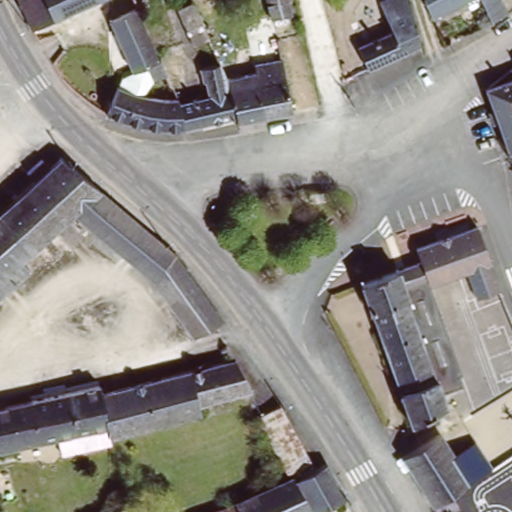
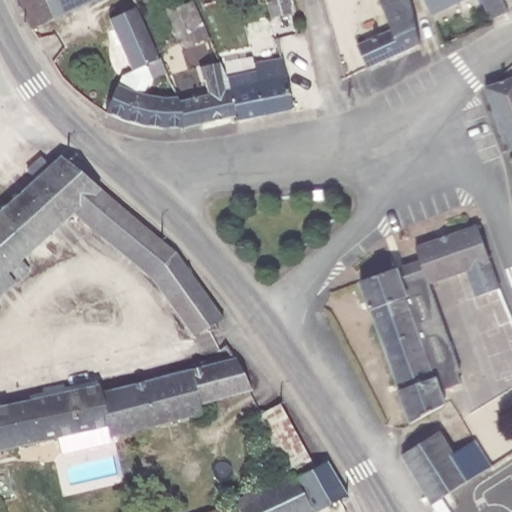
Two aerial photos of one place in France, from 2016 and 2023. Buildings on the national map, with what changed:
unchanged [(27,28),(17,10),(13,0),(93,0),(27,28)]
unchanged [(298,18),(278,25),(272,4),(265,6),(263,0),(292,0),(298,18)]
unchanged [(421,43),(367,70),(357,44),(390,30),(380,0),(411,0),(421,43)]
unchanged [(433,18),(425,0),(471,0),(433,18)]
unchanged [(170,94),(152,102),(144,85),(136,88),(132,80),(127,82),(105,31),(123,23),(120,15),(132,10),(136,19),(132,21),(155,73),(159,71),(172,65),(177,75),(174,77),(177,83),(167,87),(170,94)]
unchanged [(179,114),(217,102),(212,88),(207,90),(197,62),(213,57),(229,85),(239,124),(187,137),(179,114)]
unchanged [(229,85),(259,78),(257,74),(280,68),(295,117),(240,128),(239,124),(229,85)]
unchanged [(512,81),(512,153),(505,154),(482,89),(512,81)]
unchanged [(110,98),(151,111),(175,108),(179,114),(187,137),(152,139),(100,127),(110,98)]
unchanged [(59,154),(180,260),(225,314),(217,319),(195,335),(148,276),(92,226),(88,230),(77,221),(80,218),(74,211),(22,258),(30,267),(0,295),(0,209),(59,154)]
unchanged [(360,279),(394,267),(417,259),(414,248),(479,225),(500,287),(475,296),(468,272),(432,284),(464,382),(443,388),(449,405),(409,420),(360,279)]
unchanged [(30,444),(19,447),(20,455),(4,459),(2,453),(0,454),(0,411),(97,384),(100,395),(230,358),(249,390),(192,405),(194,413),(85,442),(87,447),(35,461),(30,444)]
unchanged [(313,466),(322,462),(341,496),(308,512),(207,512),(230,502),(288,478),(252,418),(277,407),(313,466)]
unchanged [(452,457),(480,433),(497,456),(430,512),(428,512),(404,464),(436,436),(452,457)]

